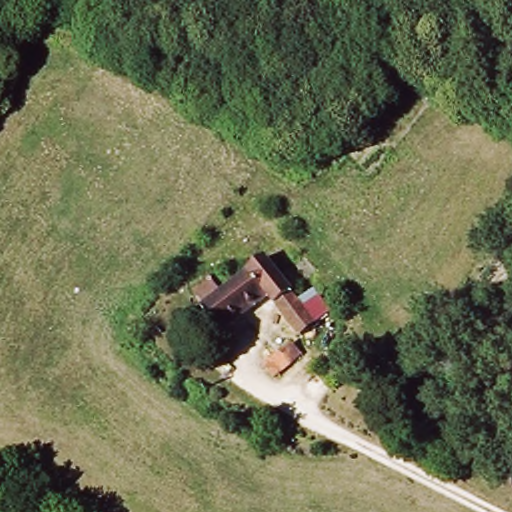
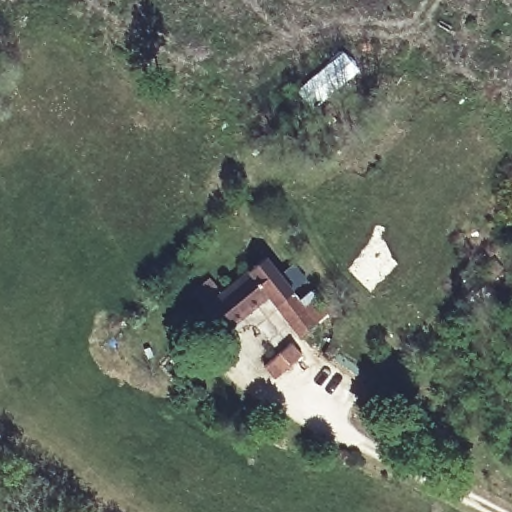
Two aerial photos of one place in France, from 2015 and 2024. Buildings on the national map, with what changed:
unchanged [(276,297),(229,333),(209,307),(211,306),(200,292),(219,278),(229,291),(274,258),(324,325),(308,338),(276,297)]
unchanged [(284,373),(272,358),(292,344),(304,357),(284,373)]

